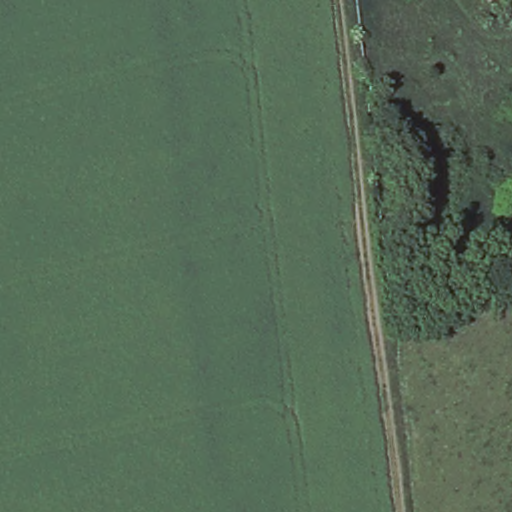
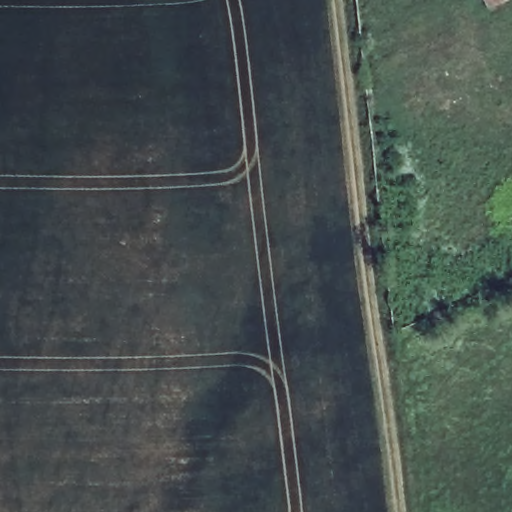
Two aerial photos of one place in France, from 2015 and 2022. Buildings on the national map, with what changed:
unchanged [(492,0),(497,0),(492,2),(492,0)]

